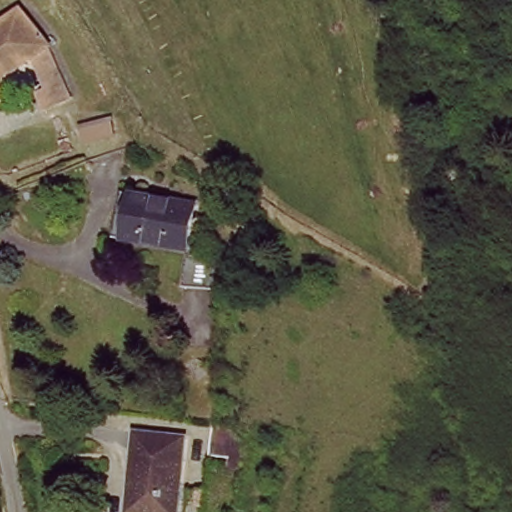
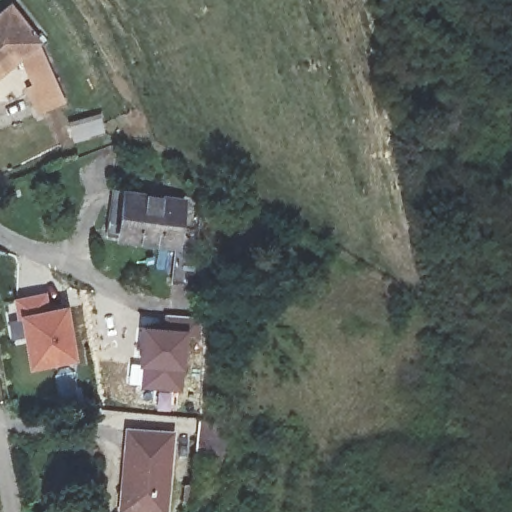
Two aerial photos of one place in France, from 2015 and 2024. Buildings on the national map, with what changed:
unchanged [(18,58),(0,72),(0,13),(12,4),(45,44),(71,91),(47,105),(18,58)]
unchanged [(107,236),(119,188),(186,204),(176,250),(107,236)]
unchanged [(176,250),(206,257),(200,289),(198,297),(166,290),(168,282),(176,250)]
new [(49,293),(53,309),(70,307),(78,360),(29,370),(22,321),(18,323),(14,297),(49,293)]
new [(143,358),(145,329),(166,330),(168,316),(201,320),(199,335),(185,334),(181,365),(179,387),(144,383),(143,358)]
unchanged [(122,512),(122,490),(125,429),(136,431),(172,432),(169,512),(122,512)]

